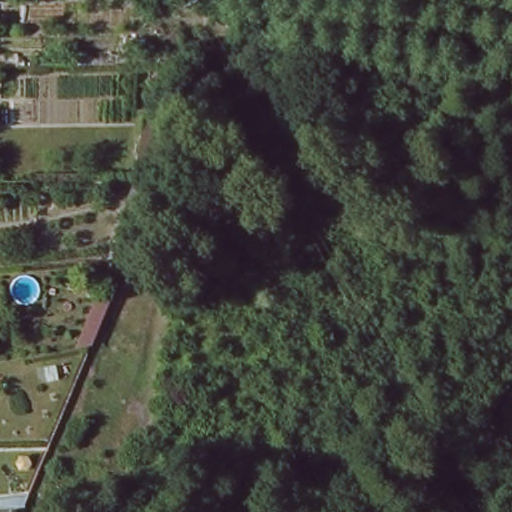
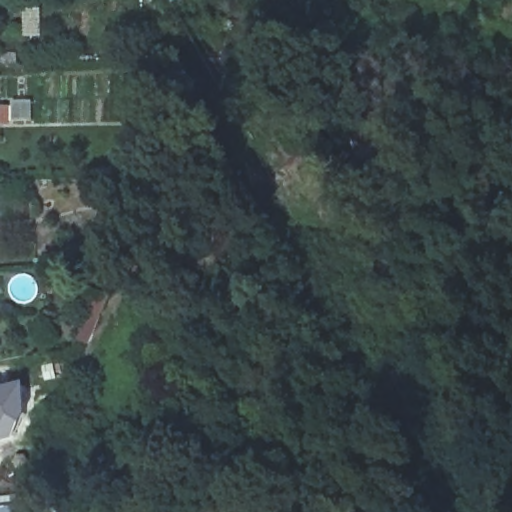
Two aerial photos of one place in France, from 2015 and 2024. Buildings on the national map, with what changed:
unchanged [(154,228),(137,221),(160,173),(182,119),(199,127),(179,172),(154,228)]
unchanged [(108,332),(90,336),(113,282),(127,289),(108,332)]
new [(28,398),(29,413),(25,423),(17,437),(10,442),(0,444),(0,389),(26,382),(28,398)]
unchanged [(15,511),(15,512),(9,512),(15,511)]

